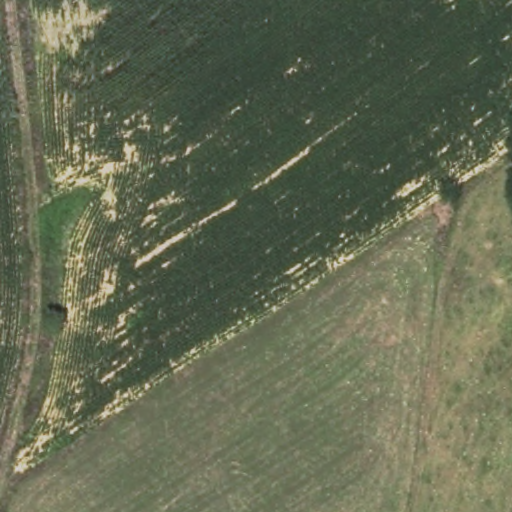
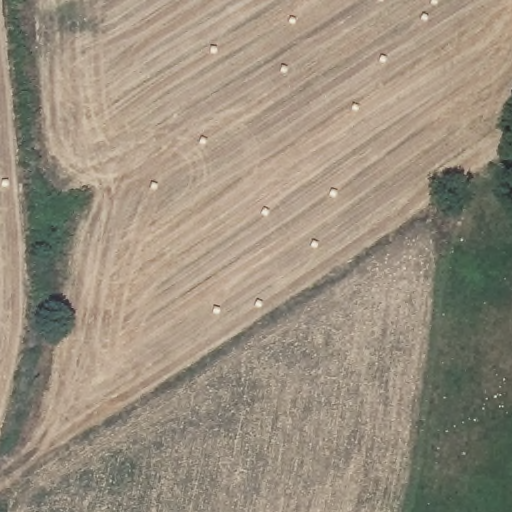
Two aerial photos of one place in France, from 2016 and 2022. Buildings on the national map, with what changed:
[]

